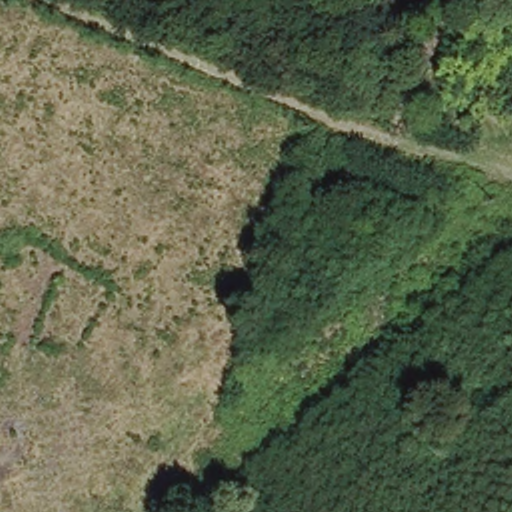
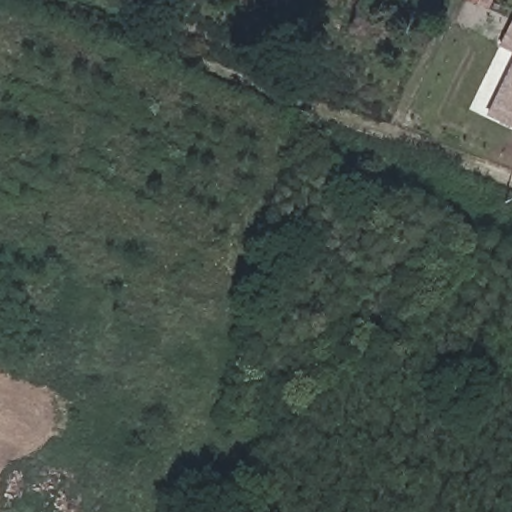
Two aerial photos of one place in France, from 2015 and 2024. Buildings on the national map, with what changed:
unchanged [(487,0),(485,5),(474,0),(487,0)]
new [(498,45),(509,20),(512,22),(512,53),(498,45)]
new [(512,58),(512,127),(485,114),(512,58)]

